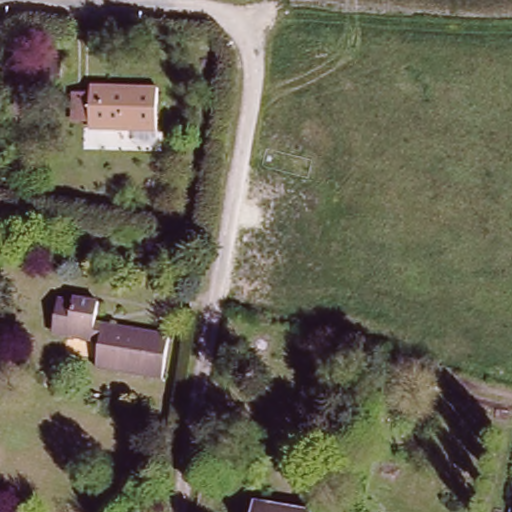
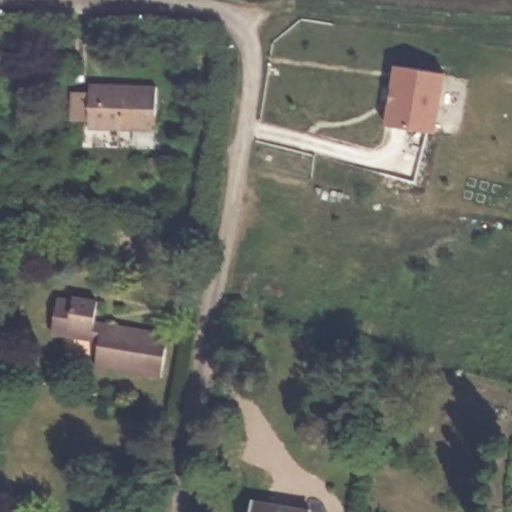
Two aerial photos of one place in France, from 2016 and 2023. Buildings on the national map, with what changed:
new [(395,65),(448,74),(438,133),(386,124),(395,65)]
unchanged [(94,112),(95,86),(111,86),(111,90),(141,90),(141,86),(160,86),(159,129),(109,128),(94,128),(94,112)]
unchanged [(98,302),(93,325),(103,327),(104,324),(169,337),(163,368),(163,370),(161,375),(98,364),(101,340),(92,337),(91,340),(67,335),(63,335),(53,333),(54,327),(59,300),(74,302),(75,297),(98,302)]
unchanged [(313,512),(256,512),(259,500),(313,512)]

